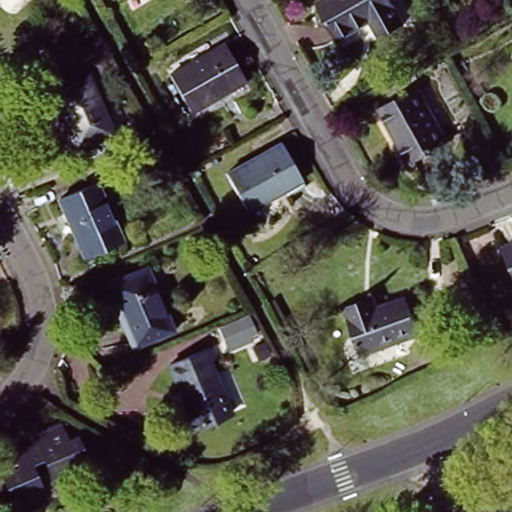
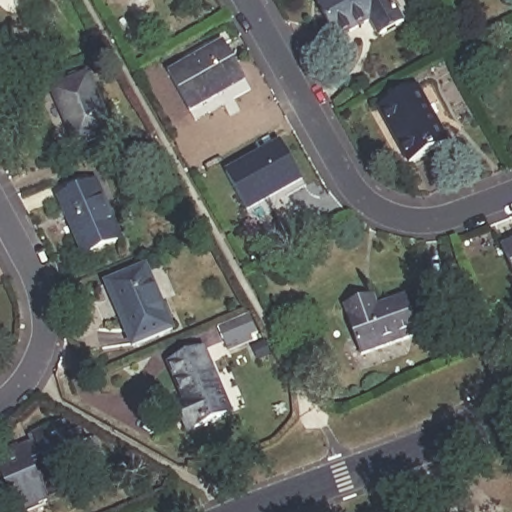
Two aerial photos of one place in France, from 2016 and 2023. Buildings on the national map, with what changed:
unchanged [(323,0),(383,0),(397,24),(374,36),(367,24),(335,42),(313,5),(323,0)]
unchanged [(191,113),(170,75),(220,46),(241,84),(191,113)]
unchanged [(112,131),(65,148),(43,94),(90,77),(112,131)]
unchanged [(441,144),(409,161),(380,107),(412,90),(441,144)]
unchanged [(297,180),(245,209),(225,173),(275,143),(297,180)]
unchanged [(118,243),(81,257),(60,201),(97,188),(118,243)]
unchanged [(502,248),(512,244),(512,268),(502,248)]
unchanged [(175,330),(137,345),(110,282),(150,267),(175,330)]
unchanged [(366,355),(352,310),(380,302),(382,311),(409,303),(420,338),(366,355)]
unchanged [(260,335),(231,346),(224,327),(252,316),(260,335)]
unchanged [(230,414),(187,431),(177,407),(187,402),(172,365),(205,352),(230,414)]
unchanged [(0,467),(42,449),(35,435),(60,424),(67,438),(77,434),(83,448),(92,445),(101,465),(55,484),(60,495),(22,512),(14,512),(4,488),(0,490),(0,479),(0,467)]

